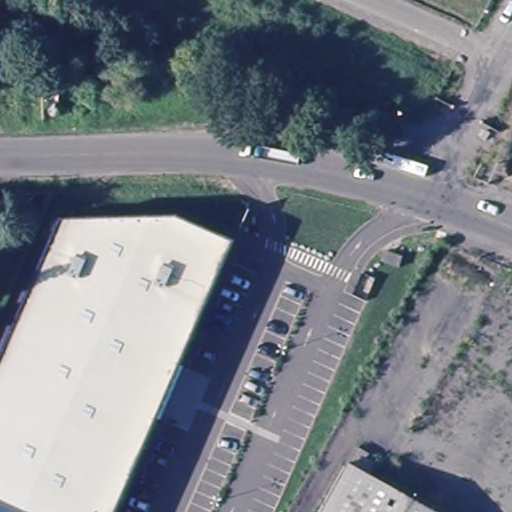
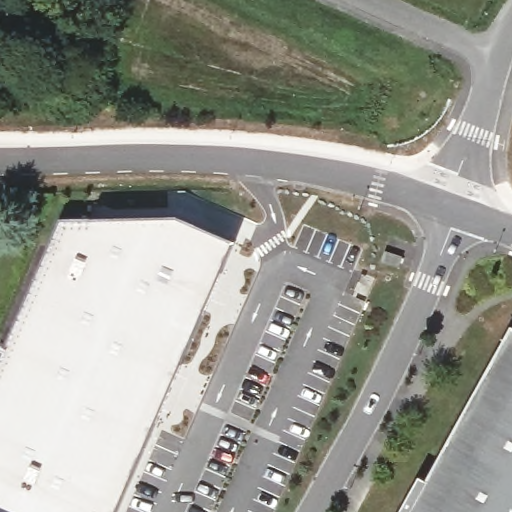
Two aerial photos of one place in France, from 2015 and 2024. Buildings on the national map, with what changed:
unchanged [(235,242),(119,512),(0,512),(0,359),(60,220),(178,217),(235,242)]
new [(432,475),(512,332),(512,512),(405,512),(427,472),(432,475)]
demolished [(440,512),(321,512),(349,461),(440,512)]

